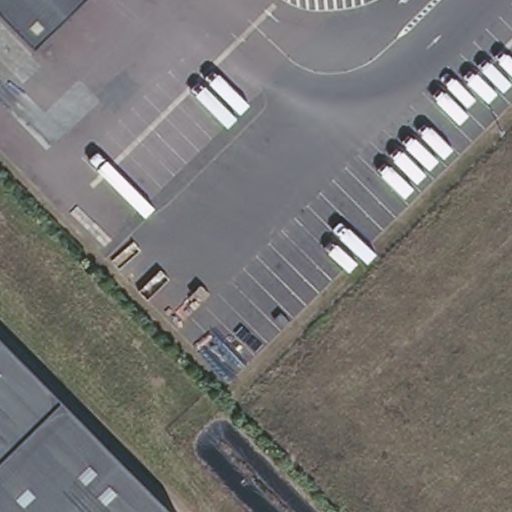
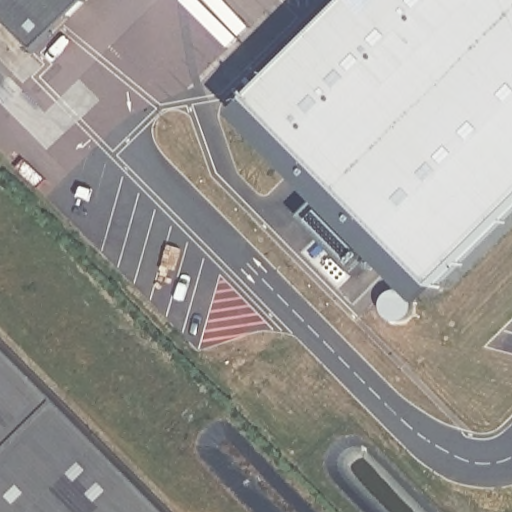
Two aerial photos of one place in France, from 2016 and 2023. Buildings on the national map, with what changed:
unchanged [(0,16),(0,0),(76,0),(30,46),(0,16)]
new [(252,127),(367,7),(361,0),(512,0),(512,242),(438,312),(252,127)]
unchanged [(176,512),(0,512),(0,335),(176,512)]

